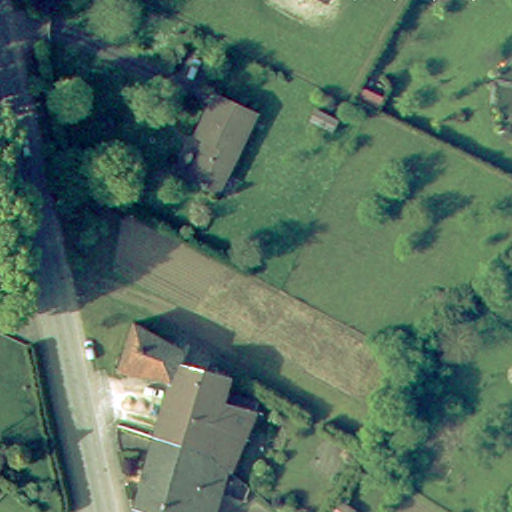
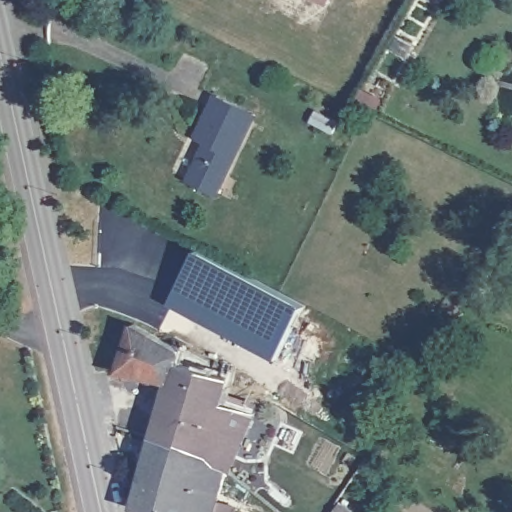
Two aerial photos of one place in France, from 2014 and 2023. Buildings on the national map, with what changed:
unchanged [(186,182),(204,144),(193,138),(213,98),(249,116),(251,117),(213,196),(186,182)]
unchanged [(339,131),(334,144),(311,132),(316,120),(339,131)]
new [(194,251),(301,305),(276,357),(169,303),(194,251)]
unchanged [(129,326),(195,362),(191,371),(173,365),(169,380),(114,372),(129,326)]
unchanged [(222,381),(216,402),(248,412),(226,472),(202,451),(151,436),(169,380),(173,365),(191,371),(222,381)]
unchanged [(226,472),(211,512),(151,512),(130,507),(151,436),(202,451),(226,472)]

